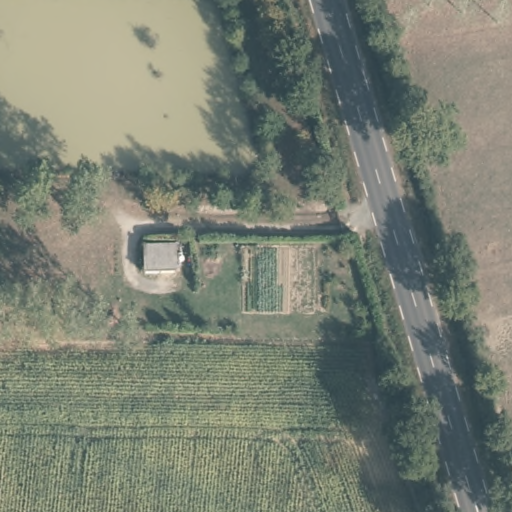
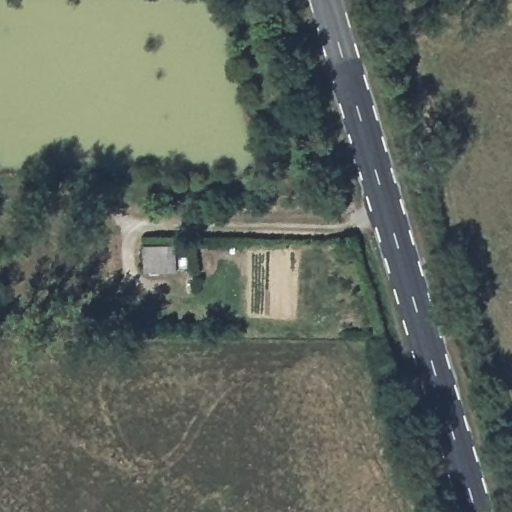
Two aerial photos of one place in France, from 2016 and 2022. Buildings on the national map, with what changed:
unchanged [(176,244),(176,268),(148,267),(148,243),(176,244)]

